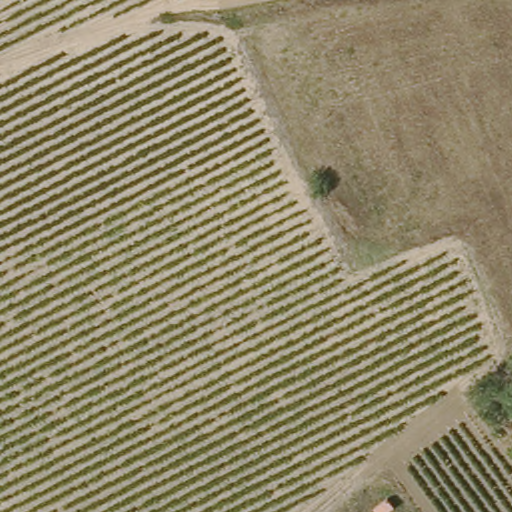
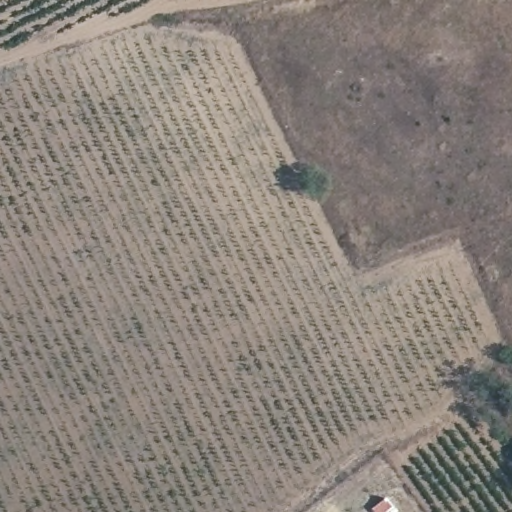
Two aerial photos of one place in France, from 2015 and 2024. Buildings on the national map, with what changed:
unchanged [(373,512),(371,508),(389,497),(398,512),(373,512)]

